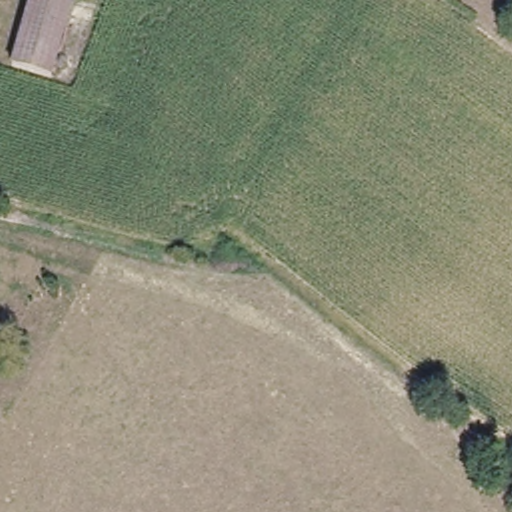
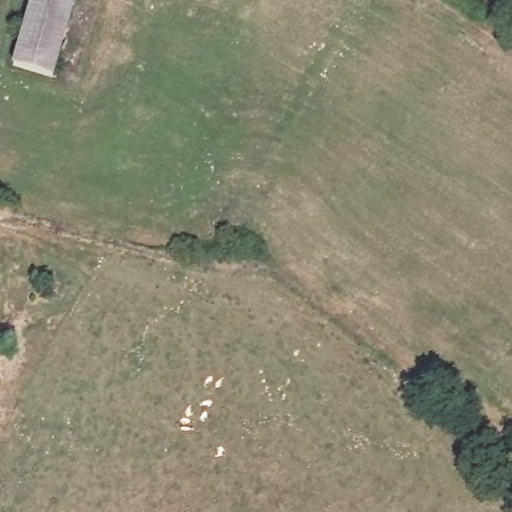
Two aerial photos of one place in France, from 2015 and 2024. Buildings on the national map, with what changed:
unchanged [(59,73),(21,65),(35,0),(75,0),(59,73)]

